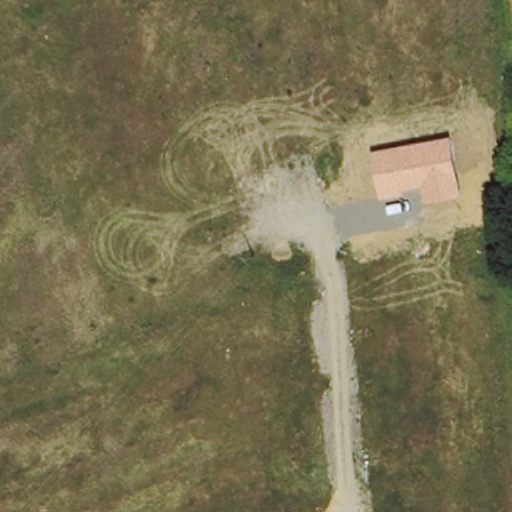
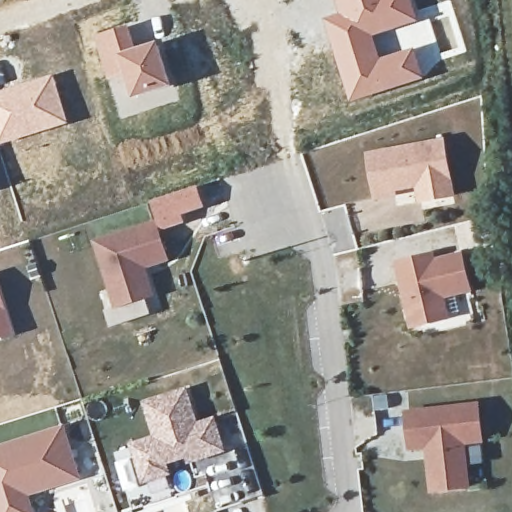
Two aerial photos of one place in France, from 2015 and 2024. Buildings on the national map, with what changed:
new [(334,0),(414,0),(420,22),(377,37),(383,56),(415,45),(427,79),(350,105),(322,17),(337,12),(334,0)]
new [(128,23),(137,47),(161,40),(175,86),(133,100),(125,75),(107,80),(94,33),(128,23)]
new [(70,124),(0,145),(0,89),(54,73),(70,124)]
unchanged [(446,138),(457,200),(423,206),(420,189),(399,192),(400,196),(377,200),(367,152),(446,138)]
new [(158,223),(170,258),(146,266),(155,295),(120,305),(100,242),(158,223)]
new [(435,251),(436,258),(463,253),(471,292),(444,298),(448,320),(408,330),(392,261),(435,251)]
new [(0,339),(0,291),(13,335),(0,339)]
new [(151,437),(141,401),(187,387),(197,421),(215,416),(225,455),(187,468),(185,460),(168,465),(170,473),(137,485),(126,445),(151,437)]
new [(480,402),(483,443),(466,445),(470,490),(428,493),(425,450),(407,452),(403,411),(480,402)]
new [(82,480),(30,497),(34,512),(0,512),(0,447),(64,425),(82,480)]

